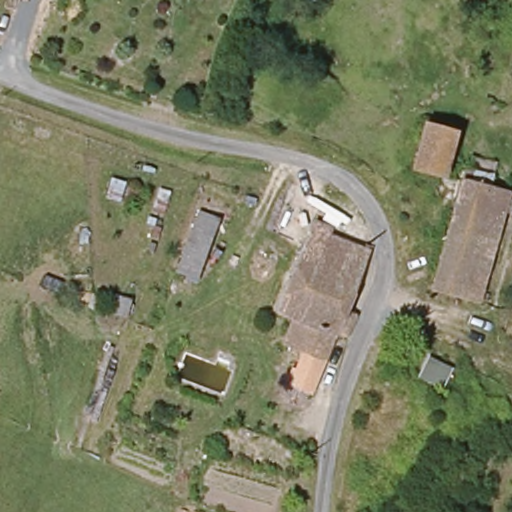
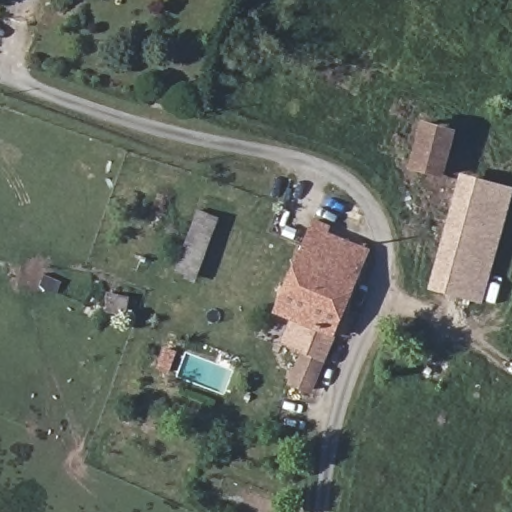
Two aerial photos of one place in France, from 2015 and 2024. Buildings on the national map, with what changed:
unchanged [(444,178),(414,168),(427,126),(457,135),(444,178)]
unchanged [(512,198),(482,298),(432,284),(462,184),(512,198)]
unchanged [(222,219),(199,280),(176,273),(197,210),(222,219)]
unchanged [(293,326),(279,320),(313,224),(332,230),(328,242),(366,254),(343,314),(353,319),(344,339),(334,337),(312,395),(292,388),(304,357),(284,348),(293,326)]
unchanged [(455,363),(443,389),(416,379),(427,352),(455,363)]

